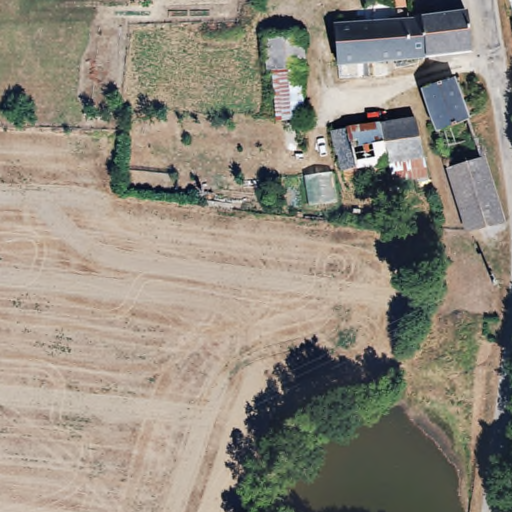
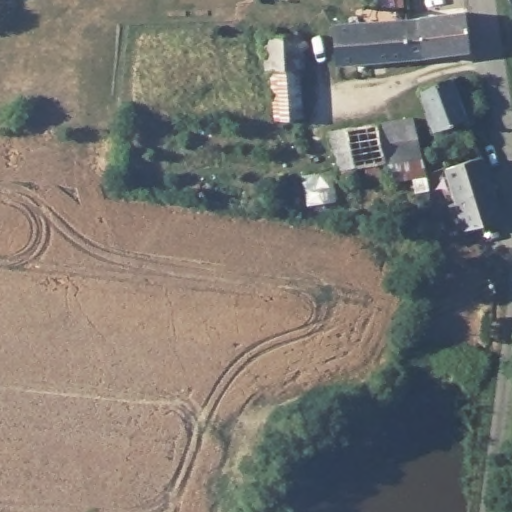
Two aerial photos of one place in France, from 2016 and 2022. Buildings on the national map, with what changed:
unchanged [(509,22),(505,0),(512,0),(512,21),(509,22)]
unchanged [(448,14),(463,14),(465,49),(404,55),(401,19),(448,14)]
unchanged [(394,19),(401,19),(404,55),(334,60),(330,24),(394,19)]
unchanged [(299,28),(310,114),(270,116),(260,30),(299,28)]
unchanged [(428,128),(418,95),(456,82),(469,113),(469,118),(433,126),(428,128)]
unchanged [(469,118),(483,155),(443,165),(433,126),(469,118)]
unchanged [(411,123),(422,179),(401,183),(396,158),(385,160),(379,127),(411,123)]
unchanged [(385,160),(389,179),(356,169),(339,172),(332,135),(349,132),(379,127),(385,160)]
unchanged [(483,155),(493,188),(502,223),(463,231),(443,165),(483,155)]

